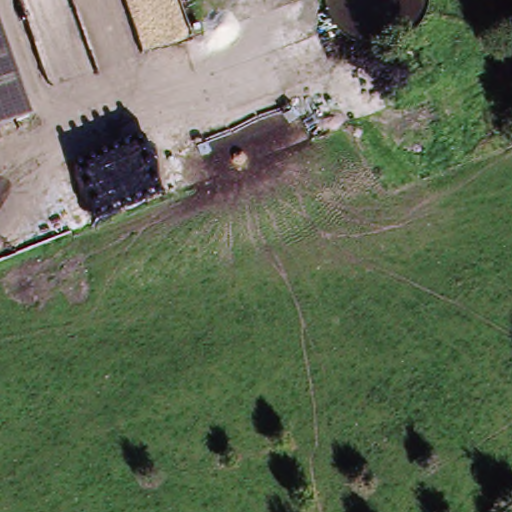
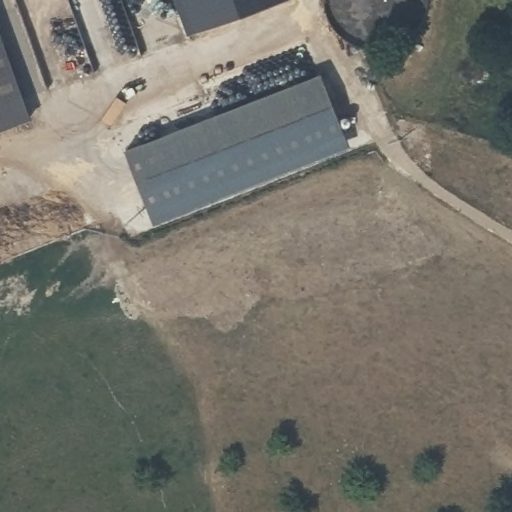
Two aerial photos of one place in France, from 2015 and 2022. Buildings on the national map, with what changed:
unchanged [(0,119),(0,53),(22,111),(0,119)]
new [(349,146),(153,222),(122,149),(318,71),(349,146)]

